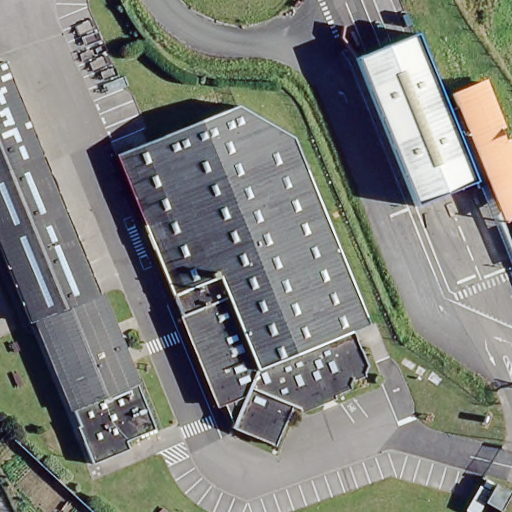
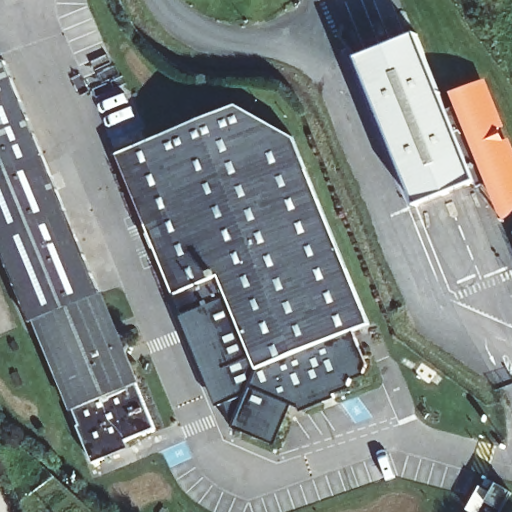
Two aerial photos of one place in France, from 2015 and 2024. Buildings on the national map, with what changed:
unchanged [(445,105),(458,100),(452,85),(485,73),(512,141),(512,183),(496,190),(488,170),(413,200),(352,53),(416,28),(445,105)]
unchanged [(94,459),(36,327),(33,330),(0,254),(0,66),(0,65),(37,153),(98,298),(153,433),(94,459)]
unchanged [(232,428),(241,402),(226,397),(216,401),(112,152),(232,101),(292,130),(371,319),(355,327),(370,363),(351,371),(354,377),(331,386),(335,390),(302,406),(288,401),(285,414),(276,440),(244,432),(232,428)]
unchanged [(98,298),(123,289),(179,422),(153,433),(98,298)]
unchanged [(503,478),(512,483),(512,506),(495,498),(503,478)]

